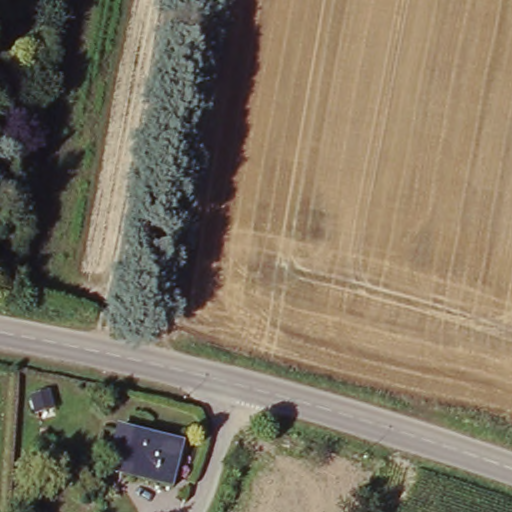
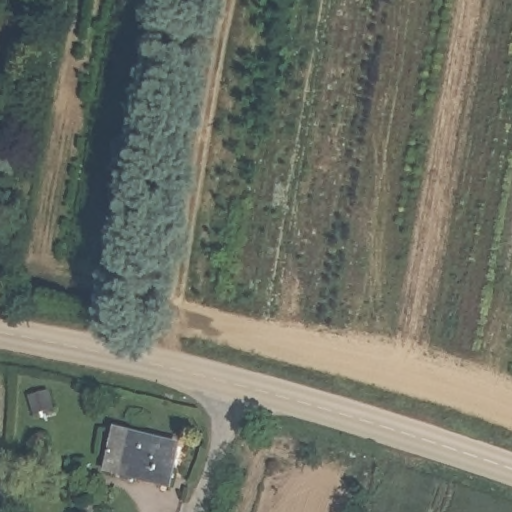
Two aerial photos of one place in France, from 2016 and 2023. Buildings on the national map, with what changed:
unchanged [(178,438),(168,481),(103,465),(115,423),(178,438)]

